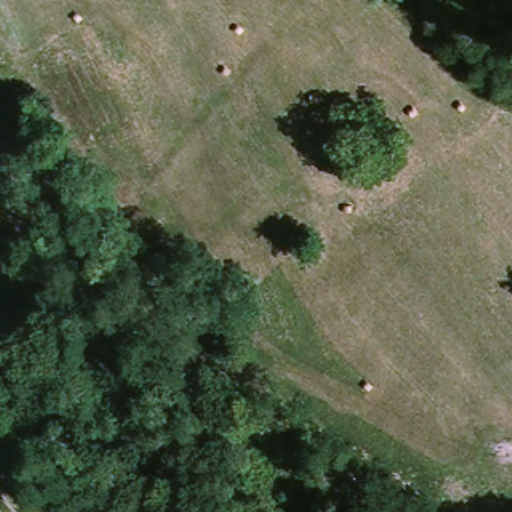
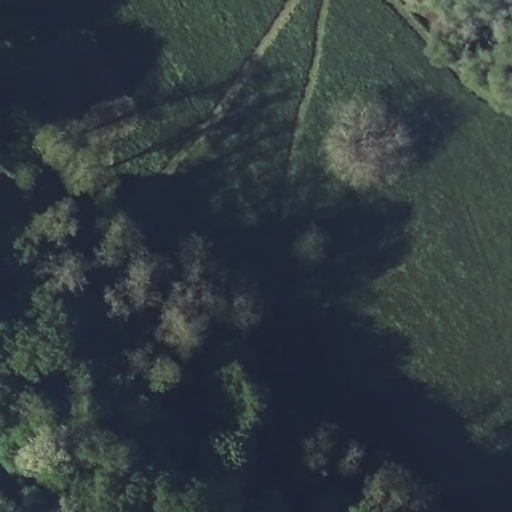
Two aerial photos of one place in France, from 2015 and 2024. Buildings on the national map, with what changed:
[]

